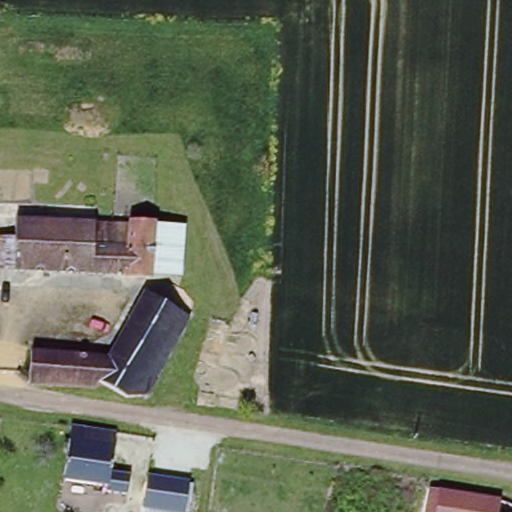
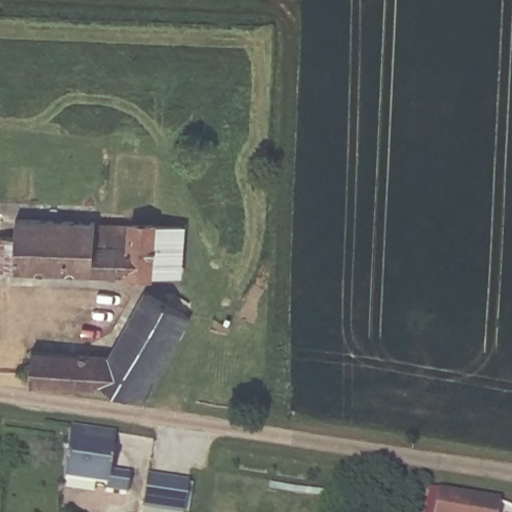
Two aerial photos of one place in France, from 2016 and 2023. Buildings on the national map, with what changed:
unchanged [(45,236),(46,217),(182,221),(182,276),(29,272),(29,236),(45,236)]
unchanged [(30,372),(33,347),(110,355),(148,290),(193,312),(156,381),(146,392),(130,393),(98,376),(94,383),(30,377),(30,372)]
unchanged [(68,479),(71,443),(90,445),(91,430),(119,433),(118,447),(113,483),(68,479)]
unchanged [(191,477),(186,512),(143,506),(148,471),(191,477)]
unchanged [(496,512),(422,512),(426,488),(498,499),(496,512)]

